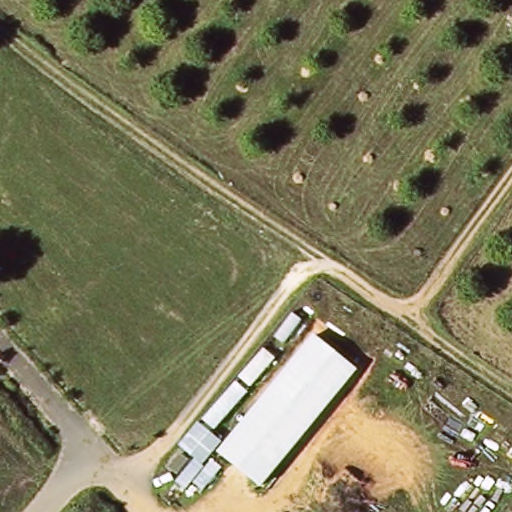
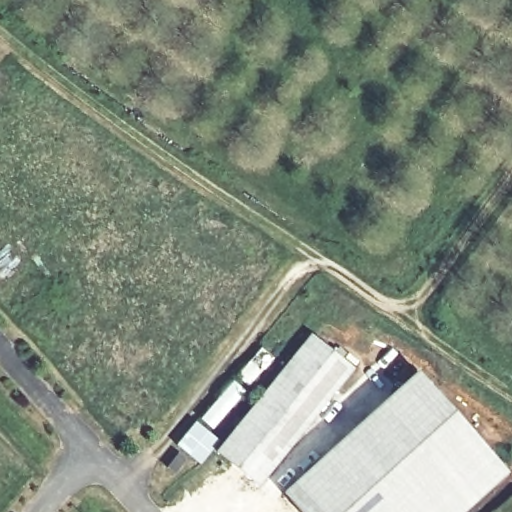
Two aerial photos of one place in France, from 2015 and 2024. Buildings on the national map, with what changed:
unchanged [(217,451),(313,333),(356,368),(260,486),(217,451)]
new [(487,452),(419,512),(299,512),(281,492),(417,372),(487,452)]
new [(195,420),(218,438),(199,462),(192,456),(176,443),(195,420)]
new [(506,472),(460,512),(419,512),(487,452),(506,472)]

